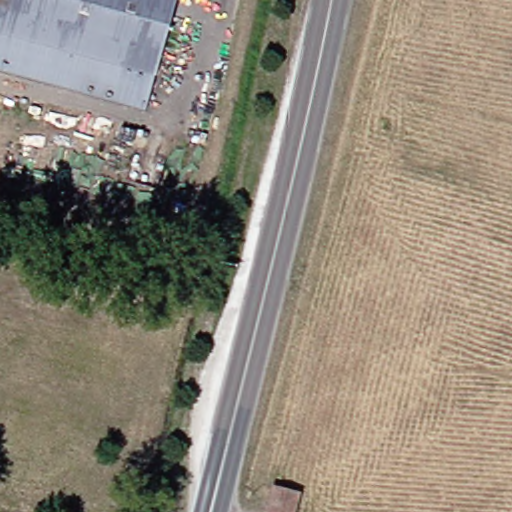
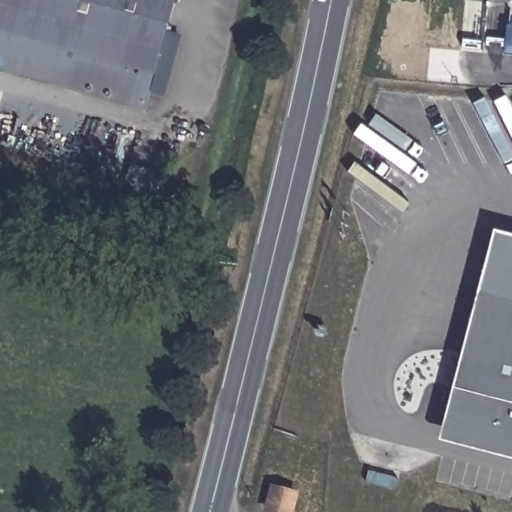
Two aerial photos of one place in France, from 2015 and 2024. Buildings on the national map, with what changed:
unchanged [(156,78),(0,33),(0,0),(179,0),(156,78)]
unchanged [(0,69),(0,33),(156,78),(147,110),(0,69)]
new [(512,236),(512,461),(442,443),(497,232),(512,236)]
unchanged [(300,490),(296,512),(282,512),(271,510),(276,485),(300,490)]

